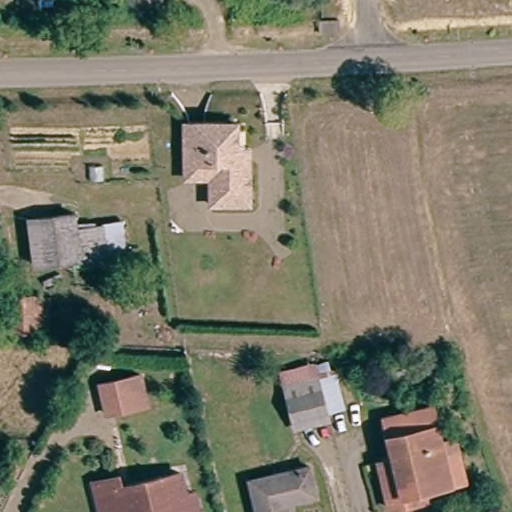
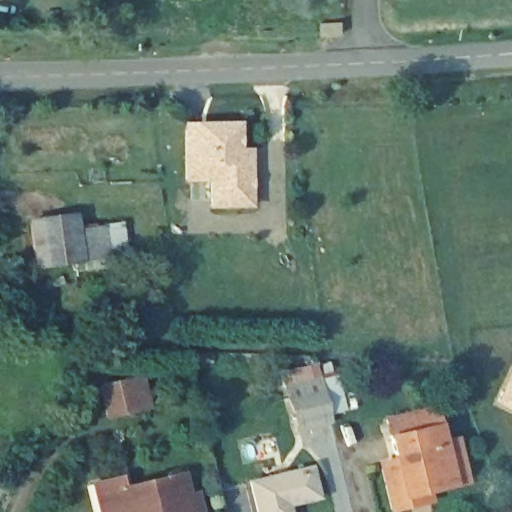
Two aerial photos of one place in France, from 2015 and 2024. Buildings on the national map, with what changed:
unchanged [(354,27),(336,27),(336,14),(355,14),(354,27)]
unchanged [(211,203),(210,179),(210,177),(183,175),(184,159),(184,122),(235,122),(235,148),(248,149),(247,162),(247,177),(247,202),(211,203)]
unchanged [(107,264),(106,258),(33,267),(26,217),(75,210),(79,227),(121,219),(126,261),(107,264)]
unchanged [(0,280),(45,277),(54,335),(5,338),(0,300),(0,280)]
unchanged [(297,414),(287,377),(323,368),(332,406),(297,414)]
unchanged [(112,408),(105,379),(146,369),(153,398),(112,408)]
new [(497,406),(512,369),(512,413),(497,406)]
unchanged [(389,512),(376,463),(393,461),(382,421),(433,408),(442,440),(459,437),(470,478),(453,482),(427,488),(432,502),(403,509),(391,512),(389,512)]
unchanged [(313,493),(282,501),(284,512),(254,512),(245,478),(306,463),(313,493)]
unchanged [(177,471),(183,494),(191,492),(197,512),(97,512),(90,483),(101,481),(115,477),(117,486),(177,471)]

